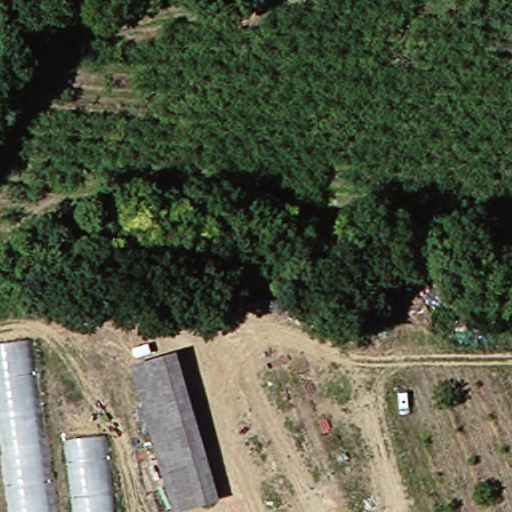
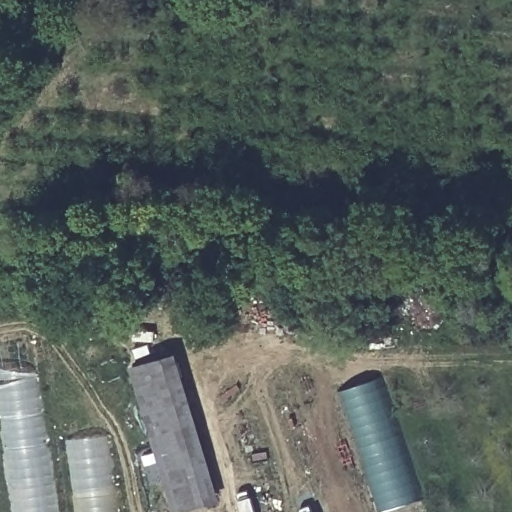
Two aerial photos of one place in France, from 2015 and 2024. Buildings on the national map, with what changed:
unchanged [(0,346),(31,340),(54,512),(12,512),(0,418),(0,346)]
unchanged [(130,362),(181,347),(222,500),(173,510),(130,362)]
new [(380,511),(341,392),(385,379),(423,497),(380,511)]
unchanged [(111,437),(120,512),(76,512),(67,445),(111,437)]

